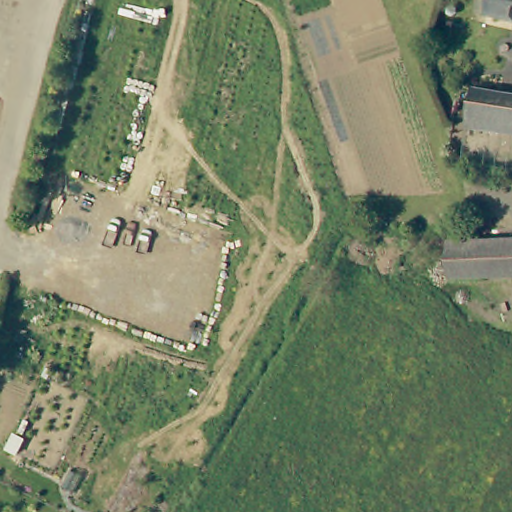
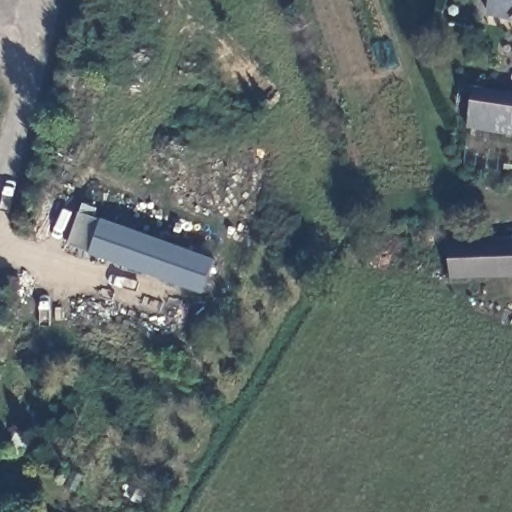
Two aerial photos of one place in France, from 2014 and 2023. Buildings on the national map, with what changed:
unchanged [(490,0),(512,0),(512,18),(487,12),(490,0)]
unchanged [(512,88),(512,130),(464,123),(470,82),(512,88)]
new [(91,254),(66,245),(81,202),(96,208),(92,217),(216,260),(204,294),(91,254)]
unchanged [(512,238),(512,275),(481,276),(480,240),(512,238)]
unchanged [(450,277),(448,243),(462,241),(480,240),(481,276),(450,277)]

